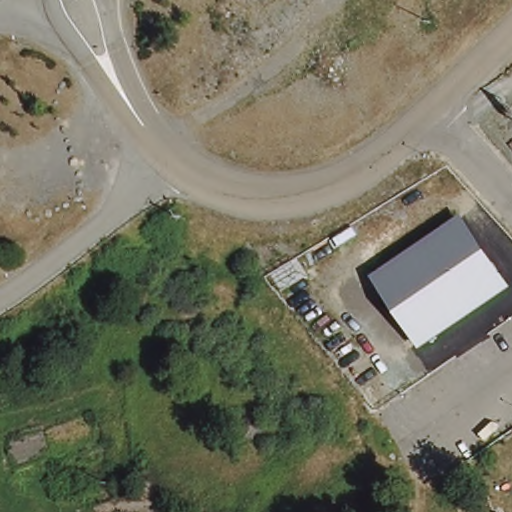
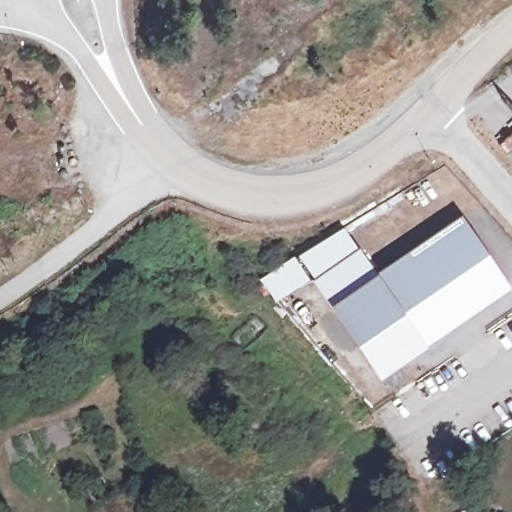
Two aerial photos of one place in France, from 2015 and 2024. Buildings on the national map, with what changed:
unchanged [(418,350),(370,278),(460,216),(508,288),(418,350)]
new [(370,278),(418,350),(378,375),(329,303),(312,277),(360,246),(376,273),(370,278)]
new [(294,256),(305,273),(281,288),(270,271),(294,256)]

